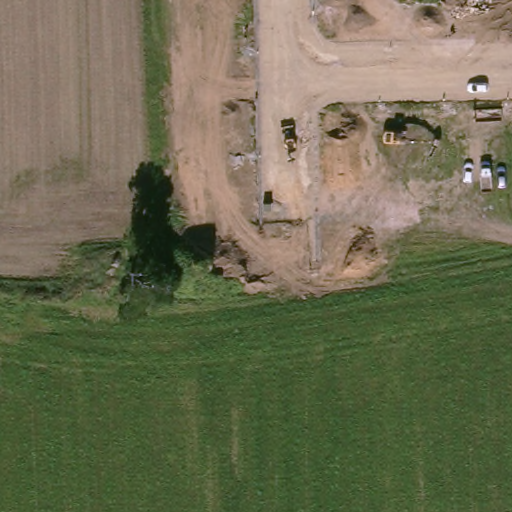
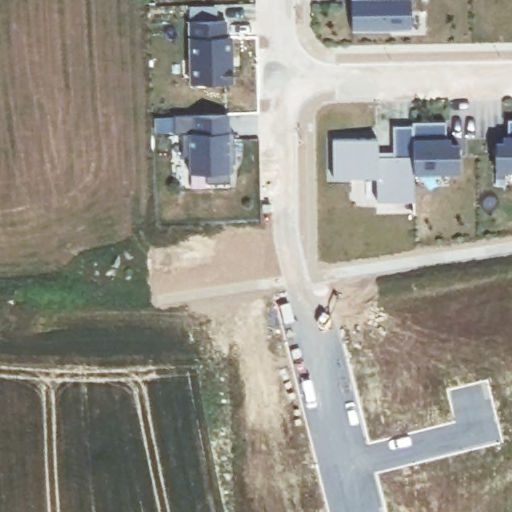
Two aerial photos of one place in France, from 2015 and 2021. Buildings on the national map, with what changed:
new [(410,23),(350,24),(350,0),(410,0),(410,23)]
new [(231,17),(231,33),(236,33),(237,79),(196,79),(195,18),(231,17)]
new [(171,116),(226,115),(226,133),(231,133),(232,164),(226,164),(227,184),(203,184),(203,173),(187,173),(187,157),(179,157),(179,135),(171,135),(171,116)]
new [(501,142),(501,138),(506,138),(506,120),(512,121),(512,170),(493,170),(494,142),(501,142)]
new [(444,123),(444,141),(449,141),(449,145),(456,145),(457,173),(412,174),(411,127),(411,123),(444,123)]
new [(376,154),(392,153),(391,127),(411,127),(412,174),(412,203),(376,204),(376,180),(333,180),(332,141),(376,140),(376,154)]

